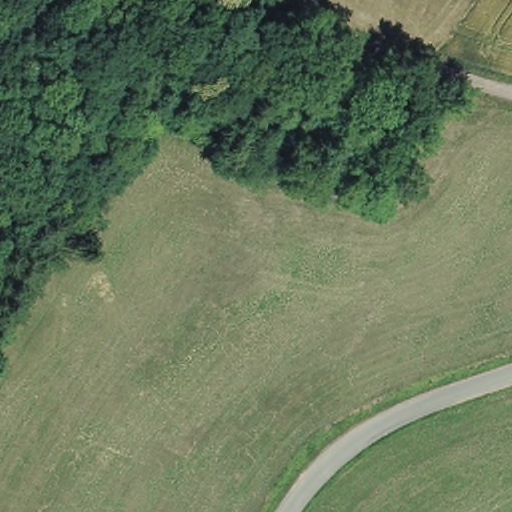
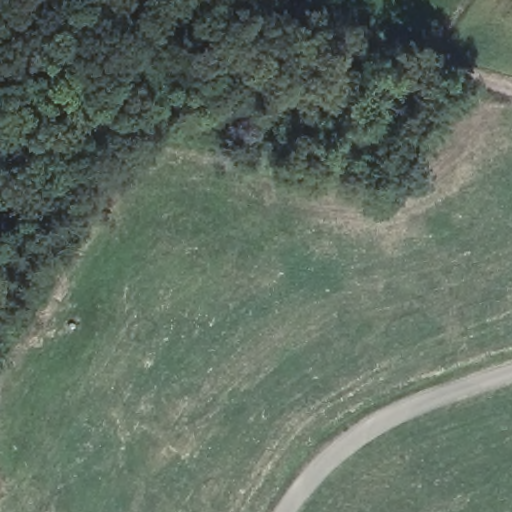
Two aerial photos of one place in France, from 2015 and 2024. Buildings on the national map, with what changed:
unchanged [(266,97),(252,123),(217,110),(227,83),(266,97)]

